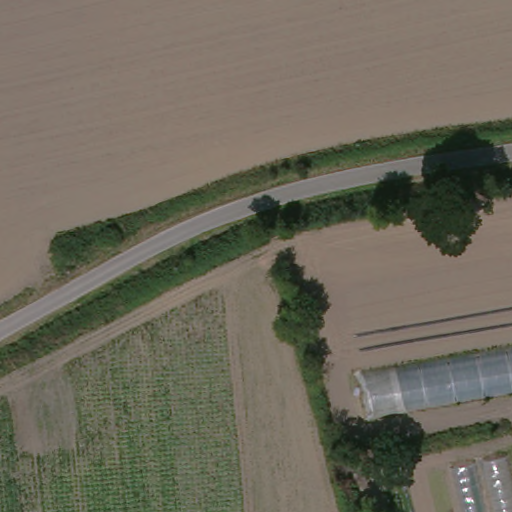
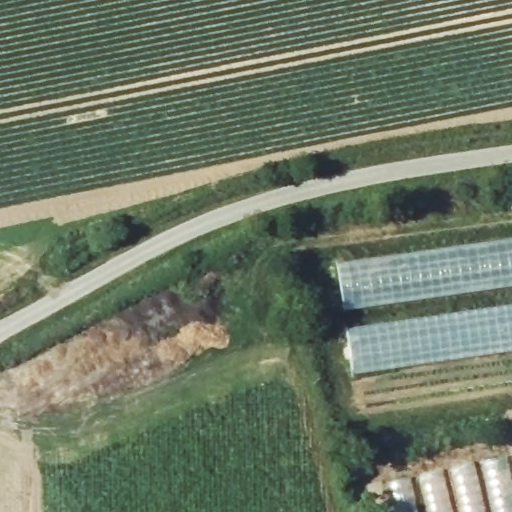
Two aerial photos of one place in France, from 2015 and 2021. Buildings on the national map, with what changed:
new [(354,372),(346,327),(512,303),(512,350),(354,372)]
demolished [(363,421),(350,343),(512,315),(512,396),(363,421)]
new [(389,482),(504,455),(512,491),(512,512),(395,512),(389,482)]

